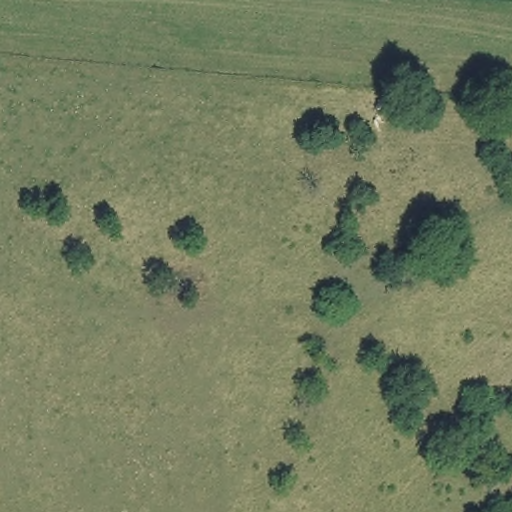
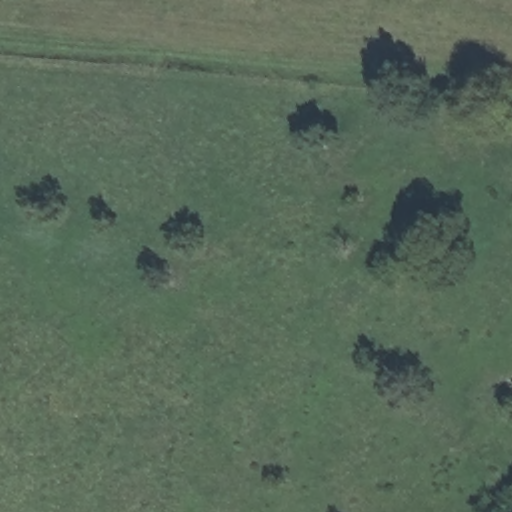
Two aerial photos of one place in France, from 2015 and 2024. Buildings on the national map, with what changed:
[]

